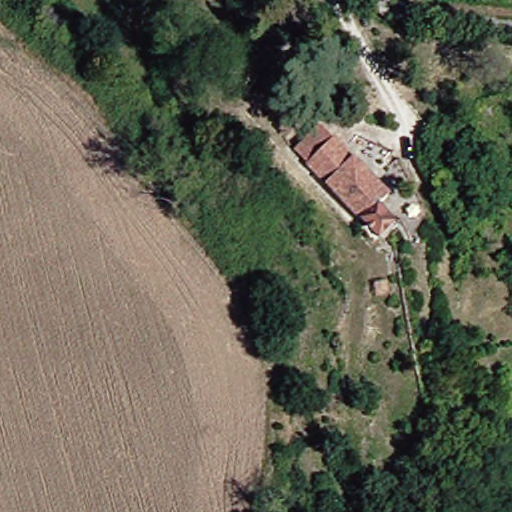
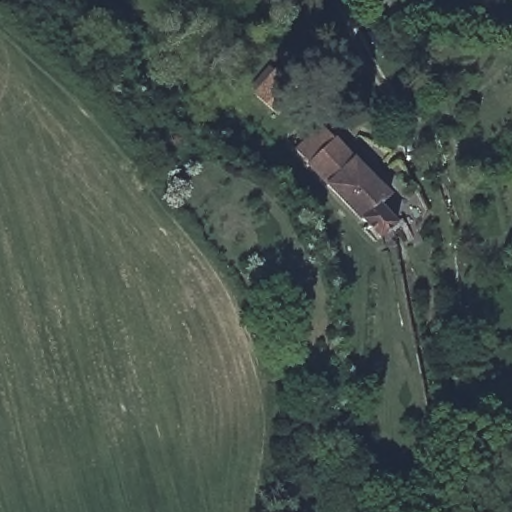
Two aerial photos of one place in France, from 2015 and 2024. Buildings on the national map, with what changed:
unchanged [(274,70),(298,90),(278,114),(254,94),(274,70)]
unchanged [(376,197),(368,205),(384,224),(368,239),(301,162),(326,140),(376,197)]

